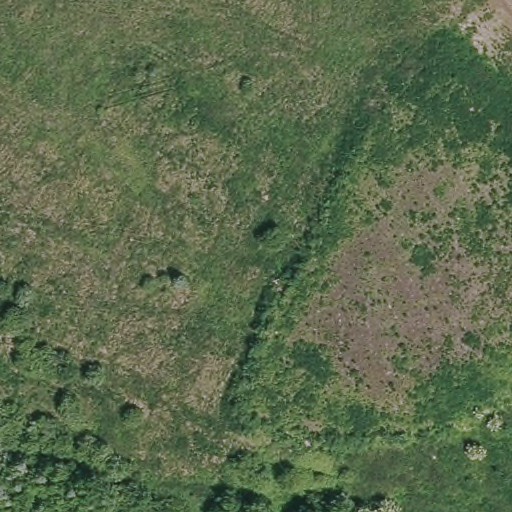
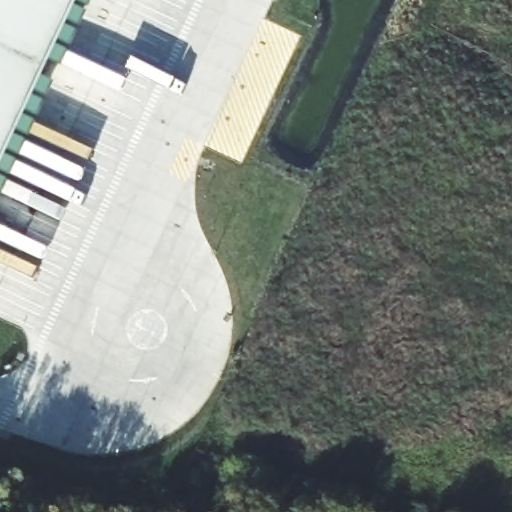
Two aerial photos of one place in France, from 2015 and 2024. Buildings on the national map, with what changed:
new [(0,137),(0,0),(64,0),(0,137)]

